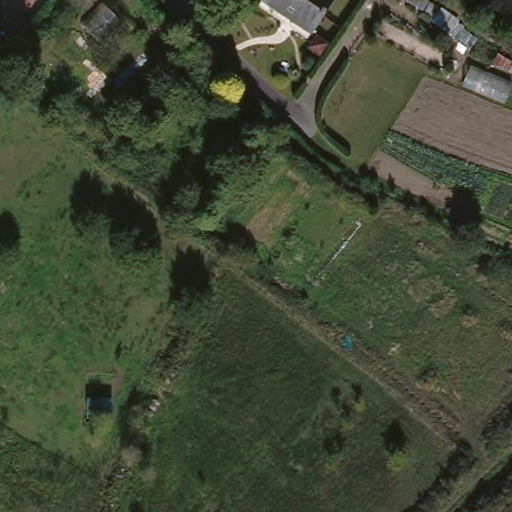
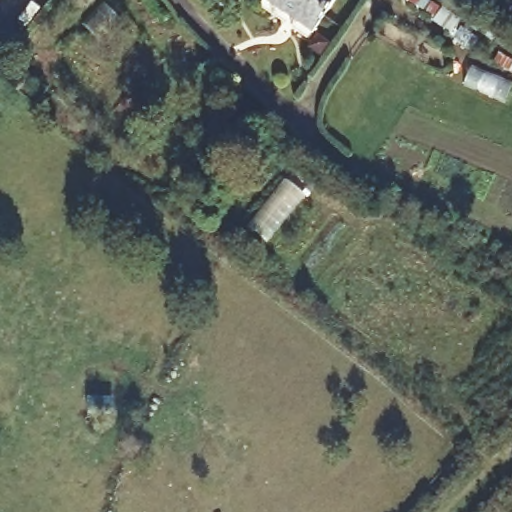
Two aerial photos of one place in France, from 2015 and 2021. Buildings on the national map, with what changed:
unchanged [(263,3),(266,0),(335,0),(337,1),(311,37),(263,3)]
unchanged [(14,69),(5,62),(0,58),(0,41),(7,27),(22,40),(26,43),(14,69)]

